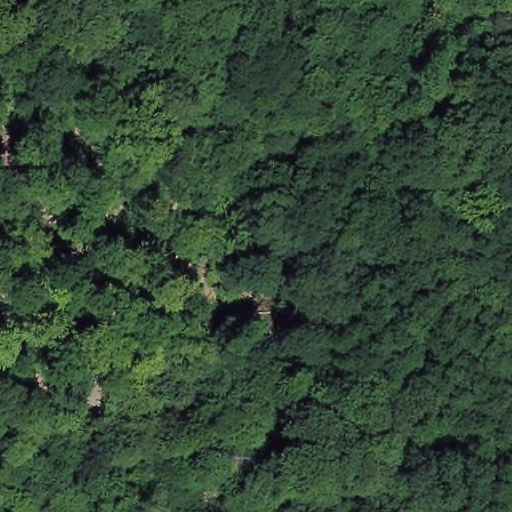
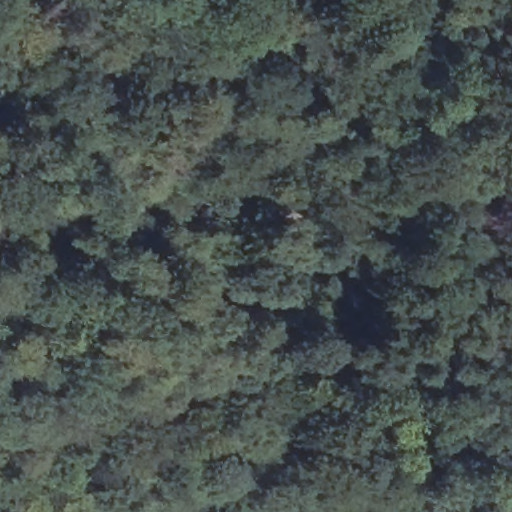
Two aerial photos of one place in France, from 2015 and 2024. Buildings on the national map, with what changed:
unchanged [(388,18),(387,0),(433,0),(435,14),(388,18)]

